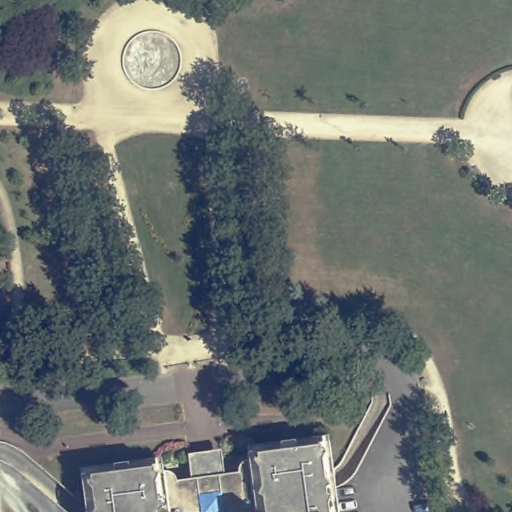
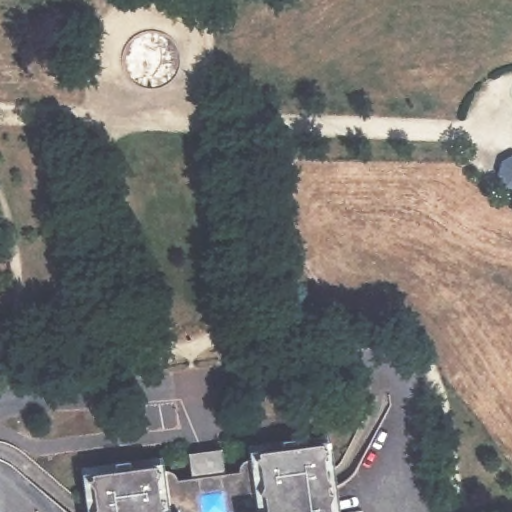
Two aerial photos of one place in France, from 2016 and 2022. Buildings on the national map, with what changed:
unchanged [(87,486),(91,481),(91,477),(116,474),(117,480),(126,479),(125,472),(149,470),(156,475),(164,473),(168,473),(172,475),(175,477),(177,480),(178,482),(193,480),(190,456),(221,453),(225,476),(240,475),(241,471),(243,467),(246,465),(250,462),(254,460),(259,460),(262,453),(286,450),(287,457),(296,456),(295,449),(322,445),(323,450),(327,453),(324,459),(326,478),(332,482),(333,495),(331,504),(332,512),(95,512),(92,489),(87,486)]

